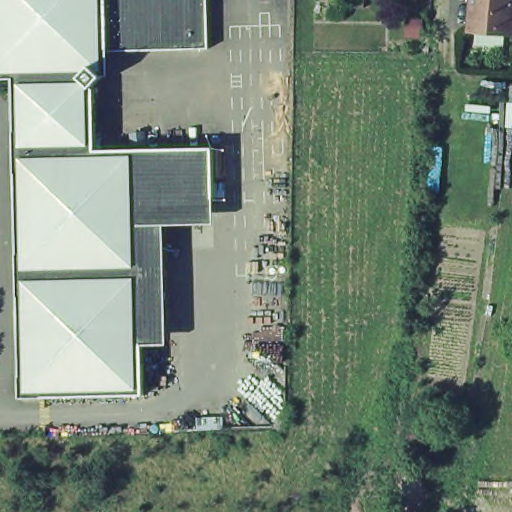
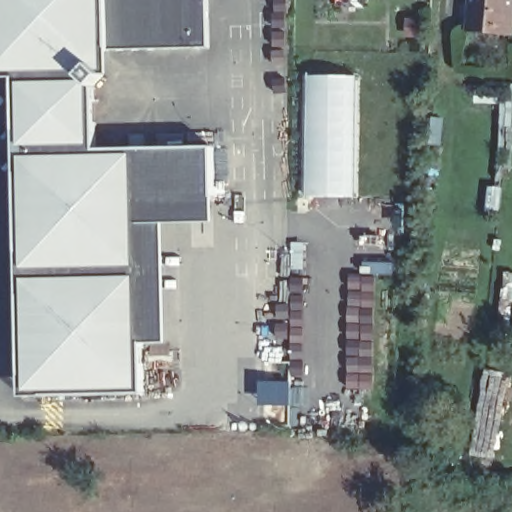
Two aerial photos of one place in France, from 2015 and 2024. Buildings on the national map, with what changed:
unchanged [(0,0),(208,0),(209,46),(108,47),(94,61),(104,71),(94,81),(96,148),(48,148),(48,130),(44,130),(15,130),(13,73),(0,73),(0,0)]
unchanged [(476,33),(478,0),(512,0),(512,36),(476,33)]
new [(309,74),(359,75),(357,197),(308,197),(309,74)]
unchanged [(142,198),(146,343),(147,391),(23,394),(15,150),(15,130),(44,130),(48,130),(48,148),(96,148),(193,146),(214,145),(216,196),(142,198)]
unchanged [(216,221),(168,223),(170,342),(146,343),(142,198),(216,196),(216,221)]

